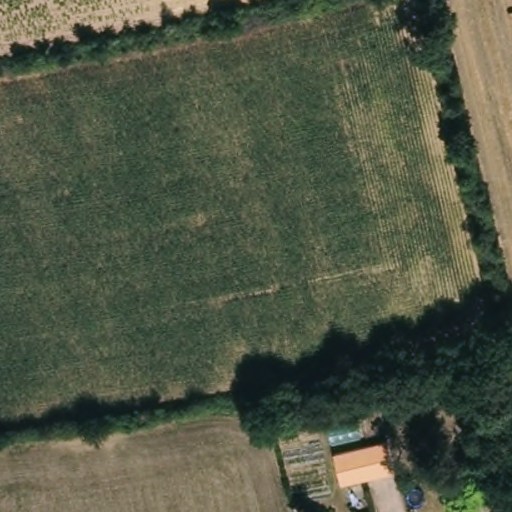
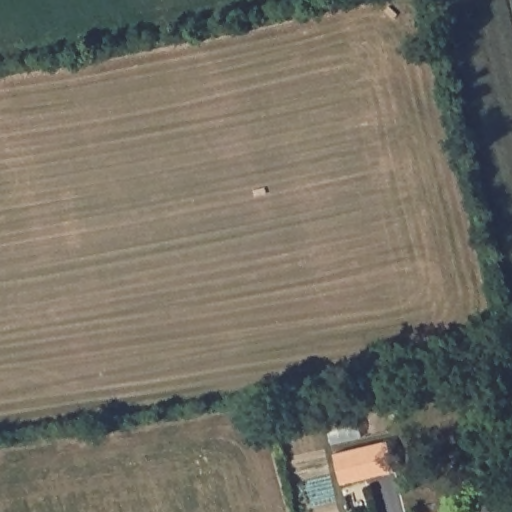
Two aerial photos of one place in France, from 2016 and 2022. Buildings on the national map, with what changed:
unchanged [(328,449),(382,434),(389,464),(334,478),(328,449)]

